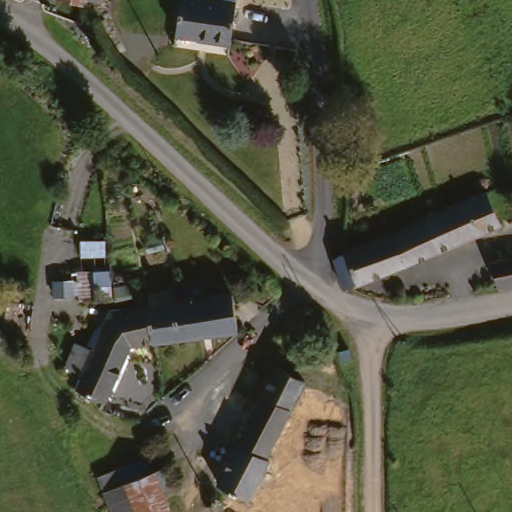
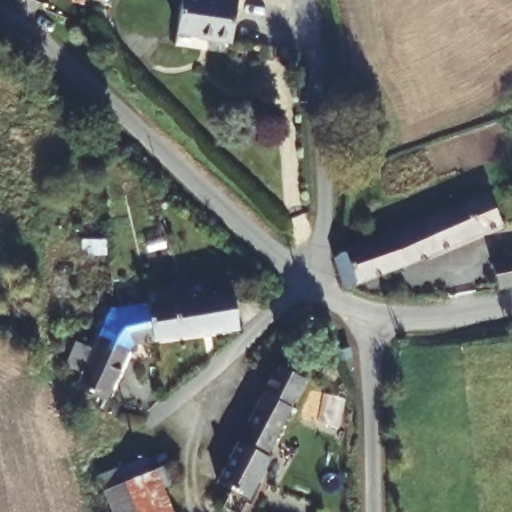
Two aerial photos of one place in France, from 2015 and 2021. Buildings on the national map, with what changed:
unchanged [(82,8),(55,0),(56,0),(84,0),(82,8)]
unchanged [(235,8),(229,48),(175,39),(182,0),(195,0),(235,8)]
unchanged [(414,262),(348,287),(337,256),(491,190),(506,224),(414,262)]
unchanged [(512,283),(496,286),(490,262),(512,257),(512,283)]
unchanged [(77,371),(64,365),(73,343),(89,350),(107,311),(110,311),(118,310),(117,298),(107,299),(78,300),(76,272),(107,270),(113,269),(137,268),(137,269),(140,294),(140,295),(137,295),(138,307),(143,306),(149,342),(150,343),(126,347),(104,398),(71,384),(77,371)]
unchanged [(156,298),(163,293),(172,292),(171,287),(201,282),(203,299),(229,295),(232,319),(232,330),(229,331),(150,343),(149,342),(143,306),(157,304),(156,298)]
unchanged [(278,366),(308,380),(293,409),(263,394),(278,366)]
unchanged [(271,453),(274,455),(251,500),(218,482),(263,394),(293,409),(271,453)]
unchanged [(165,497),(138,509),(139,512),(112,512),(105,498),(119,491),(112,477),(146,463),(151,476),(157,473),(165,497)]
unchanged [(139,512),(138,509),(165,497),(171,511),(172,512),(139,512)]

